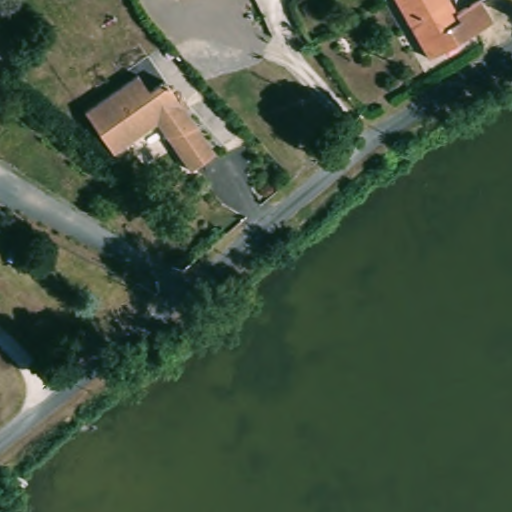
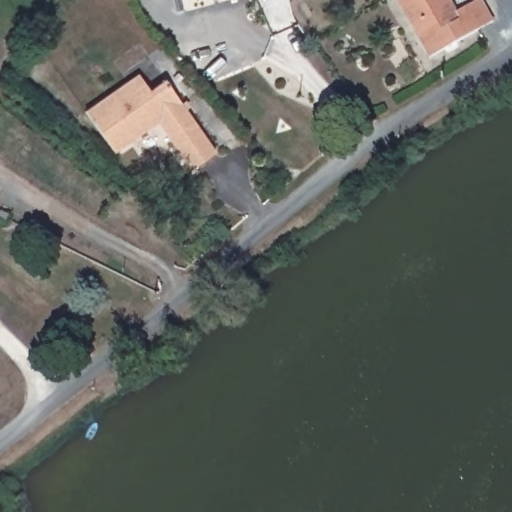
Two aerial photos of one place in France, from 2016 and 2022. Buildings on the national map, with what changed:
unchanged [(168,4),(166,0),(182,0),(168,4)]
unchanged [(459,10),(482,0),(483,0),(495,20),(434,55),(403,0),(454,0),(459,10)]
unchanged [(138,71),(149,87),(164,77),(215,149),(190,166),(157,119),(114,149),(113,149),(85,109),(138,71)]

